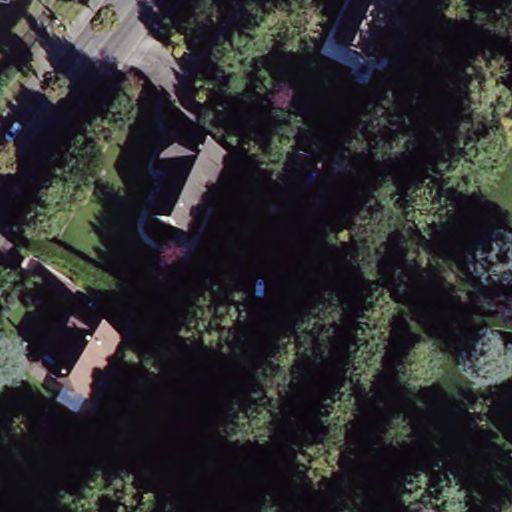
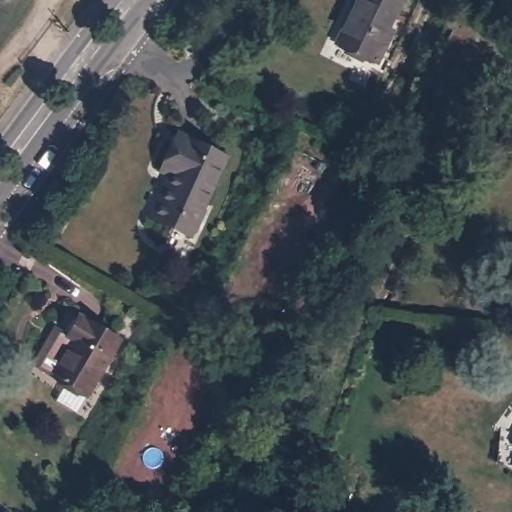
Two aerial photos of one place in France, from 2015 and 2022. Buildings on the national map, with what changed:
unchanged [(393,29),(380,62),(336,45),(353,0),(398,0),(388,26),(393,29)]
unchanged [(169,179),(157,173),(159,168),(169,147),(174,135),(202,147),(226,157),(192,231),(189,238),(172,230),(150,220),(169,179)]
unchanged [(38,360),(50,334),(63,340),(75,319),(116,338),(88,398),(51,380),(32,371),(38,360)]

